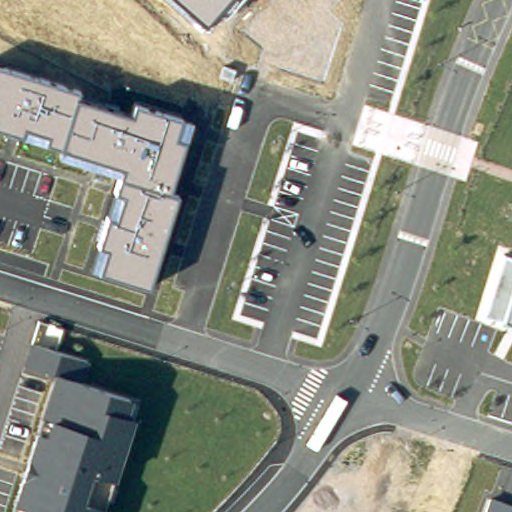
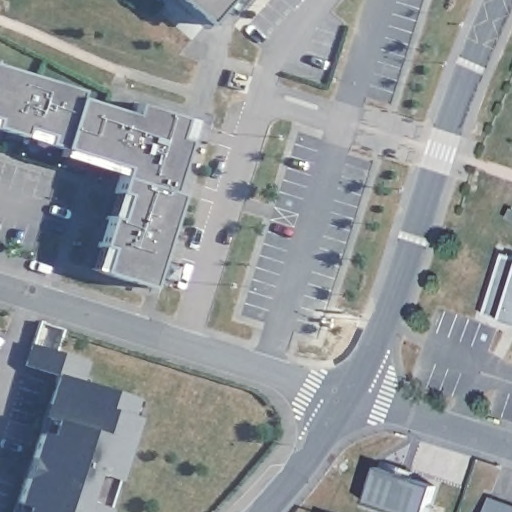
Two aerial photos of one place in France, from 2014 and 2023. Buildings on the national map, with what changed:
unchanged [(167,0),(232,0),(204,32),(167,0)]
unchanged [(177,192),(149,287),(91,269),(121,176),(59,157),(62,148),(0,129),(0,65),(79,89),(77,99),(131,114),(135,103),(190,119),(171,189),(177,192)]
unchanged [(507,219),(512,209),(512,221),(507,219)]
unchanged [(512,258),(512,323),(483,314),(502,255),(512,258)]
unchanged [(81,381),(140,401),(106,512),(10,512),(35,417),(54,374),(24,364),(31,343),(89,360),(81,381)]
new [(412,479),(437,487),(427,512),(398,512),(370,502),(380,468),(382,461),(414,472),(412,479)]
unchanged [(512,504),(512,512),(485,512),(491,496),(512,504)]

